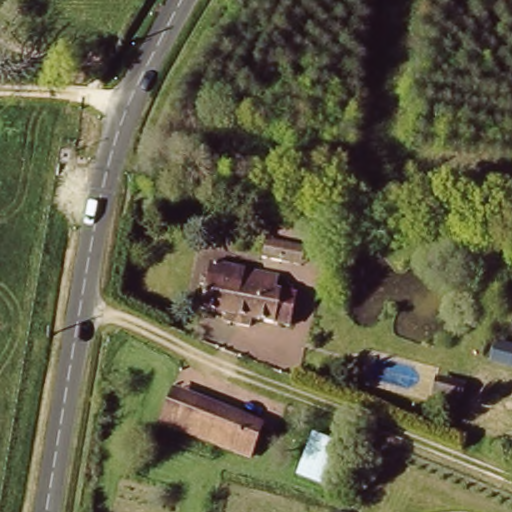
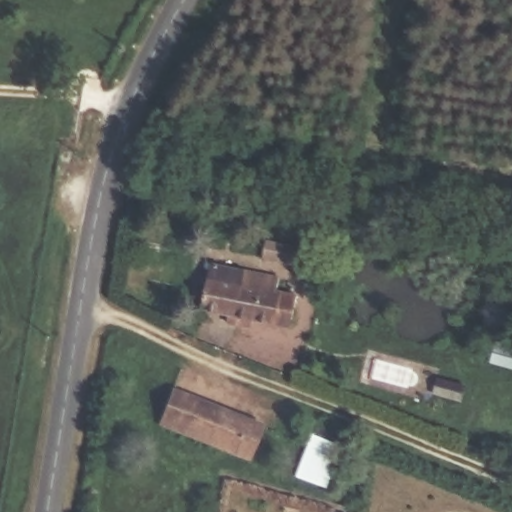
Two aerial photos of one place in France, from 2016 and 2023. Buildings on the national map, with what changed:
unchanged [(277,245),(286,263),(269,272),(260,254),(277,245)]
unchanged [(272,281),(270,295),(293,298),(289,328),(205,315),(212,273),(272,281)]
unchanged [(266,424),(252,466),(157,428),(174,386),(266,424)]
unchanged [(344,447),(328,493),(297,482),(313,437),(344,447)]

